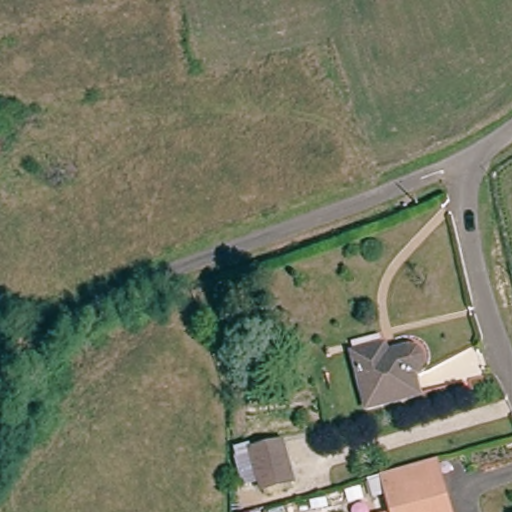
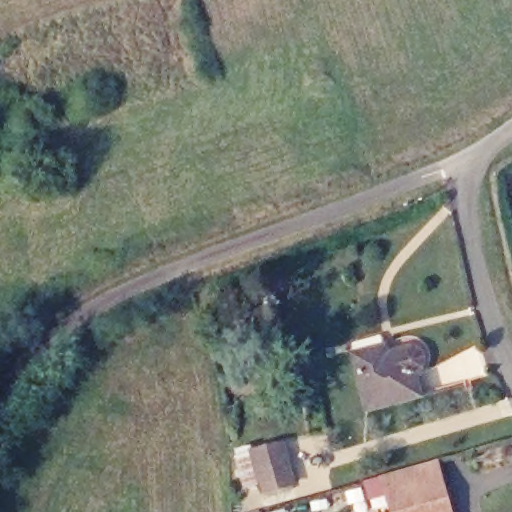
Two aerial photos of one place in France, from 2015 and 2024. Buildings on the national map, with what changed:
unchanged [(388,358),(410,354),(424,357),(427,371),(416,384),(420,400),(368,414),(353,359),(386,352),(388,358)]
unchanged [(294,480),(264,490),(253,451),(283,445),(294,480)]
unchanged [(387,477),(429,465),(440,462),(447,490),(453,512),(397,512),(387,477)]
unchanged [(261,510),(261,512),(252,512),(261,510)]

